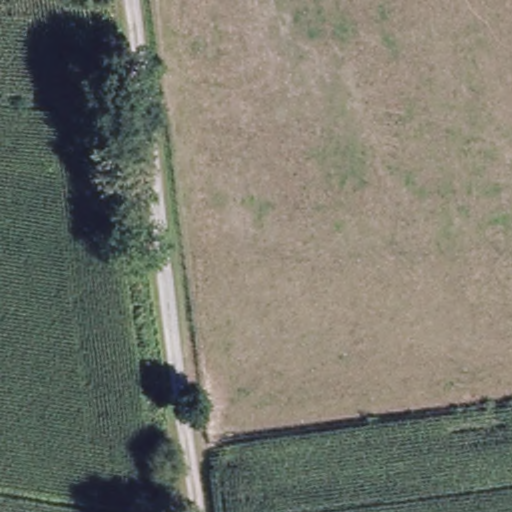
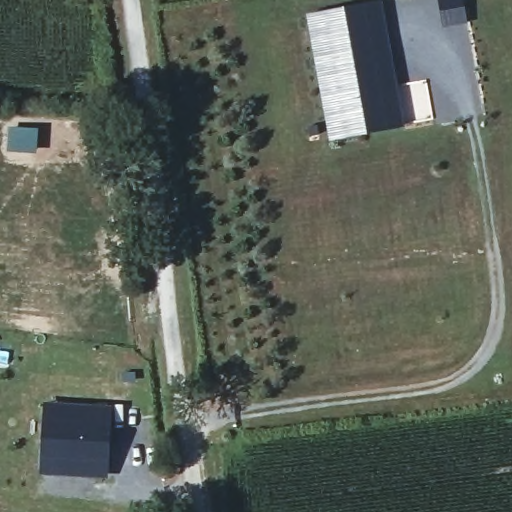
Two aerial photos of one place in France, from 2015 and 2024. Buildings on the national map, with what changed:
new [(373,0),(383,0),(405,127),(331,141),(307,14),(373,0)]
new [(112,405),(109,476),(40,473),(45,402),(112,405)]

